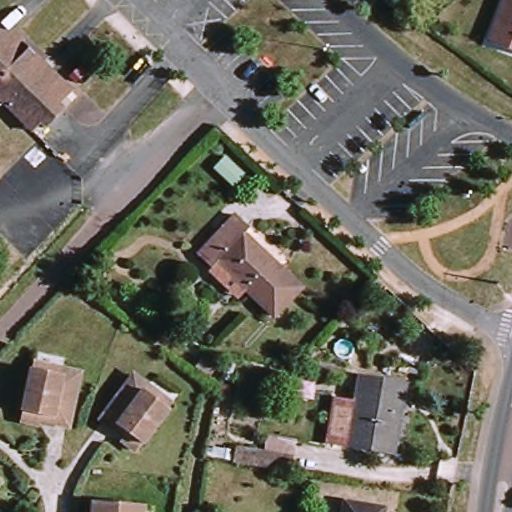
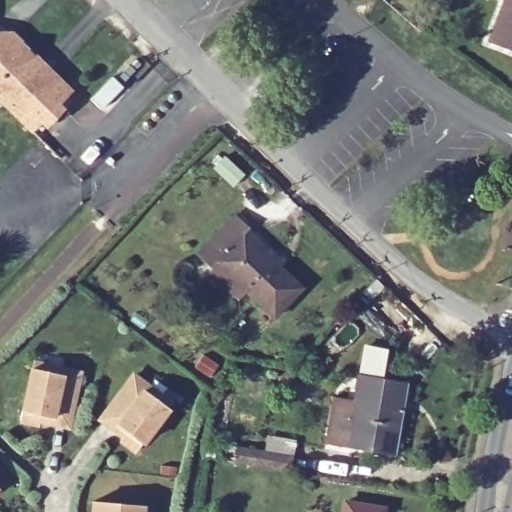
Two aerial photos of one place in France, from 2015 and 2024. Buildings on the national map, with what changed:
unchanged [(505,0),(512,0),(512,48),(489,40),(505,0)]
unchanged [(21,39),(60,80),(23,121),(14,112),(0,112),(0,43),(8,37),(21,39)]
unchanged [(56,138),(47,129),(38,137),(23,121),(60,80),(79,99),(66,111),(75,120),(56,138)]
unchanged [(241,174),(231,185),(210,168),(221,156),(241,174)]
unchanged [(218,266),(203,254),(242,214),(256,228),(247,237),(302,288),(282,311),(225,261),(218,266)]
unchanged [(39,430),(21,425),(32,372),(34,367),(64,373),(81,378),(68,431),(51,427),(40,425),(39,430)]
unchanged [(366,372),(414,382),(400,452),(353,443),(335,440),(338,423),(356,426),(366,372)]
unchanged [(101,420),(135,376),(148,386),(173,405),(169,410),(137,451),(121,440),(123,437),(116,430),(101,420)]
unchanged [(220,465),(224,447),(253,452),(255,440),(283,445),(281,457),(277,475),(220,465)]
unchanged [(0,486),(0,485),(1,485),(0,486)]
unchanged [(391,505),(389,512),(344,512),(345,500),(391,505)]
unchanged [(146,512),(97,512),(99,501),(147,506),(146,512)]

